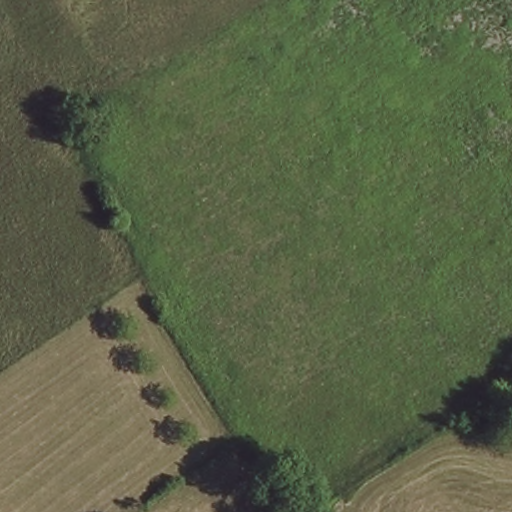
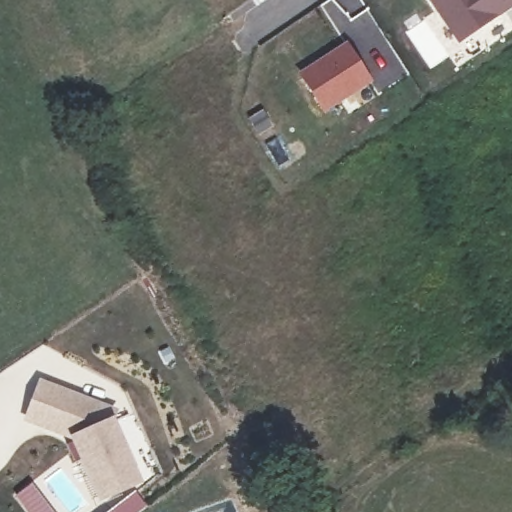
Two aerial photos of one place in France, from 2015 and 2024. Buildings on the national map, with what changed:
new [(428,0),(512,0),(512,8),(459,44),(428,0)]
new [(323,113),(298,72),(346,40),(373,81),(323,113)]
new [(40,378),(115,406),(111,415),(139,477),(101,494),(73,432),(26,414),(40,378)]

